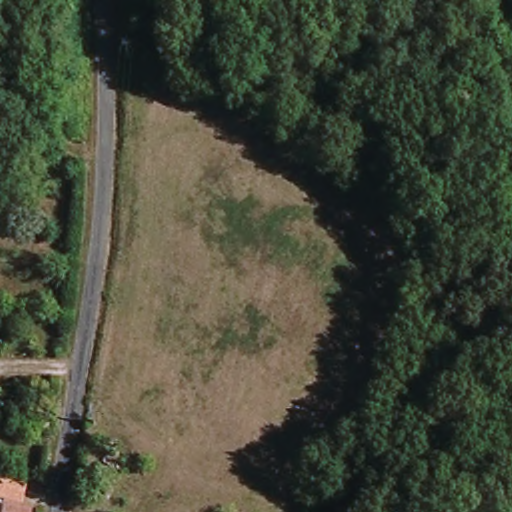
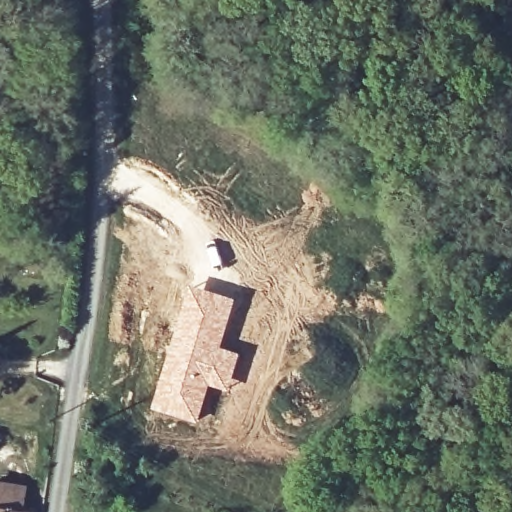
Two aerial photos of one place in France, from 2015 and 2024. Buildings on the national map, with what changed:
new [(187,284),(237,298),(222,347),(241,353),(229,392),(210,387),(198,425),(151,410),(187,284)]
unchanged [(27,486),(23,512),(0,512),(0,484),(27,486)]

